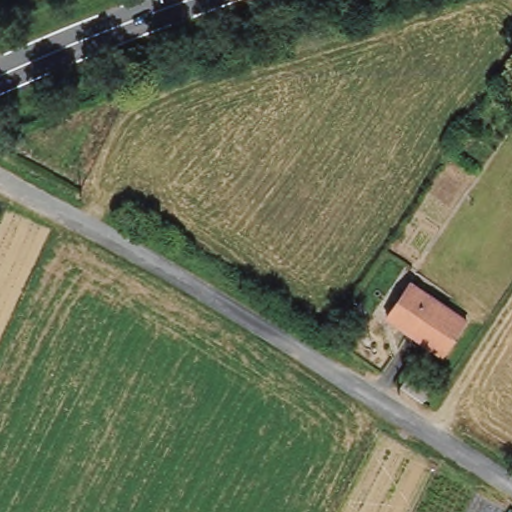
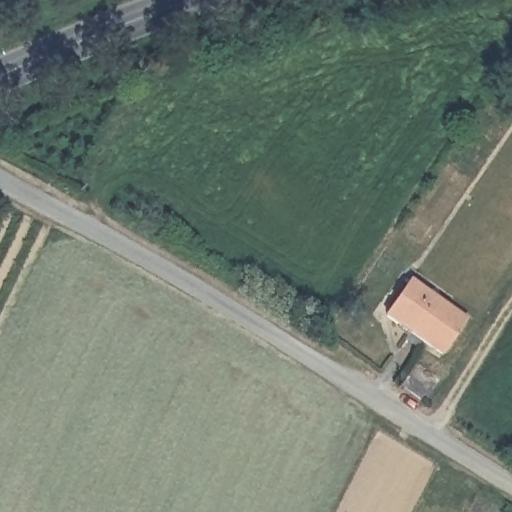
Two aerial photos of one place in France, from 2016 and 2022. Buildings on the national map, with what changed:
unchanged [(469,317),(442,358),(386,317),(410,278),(469,317)]

